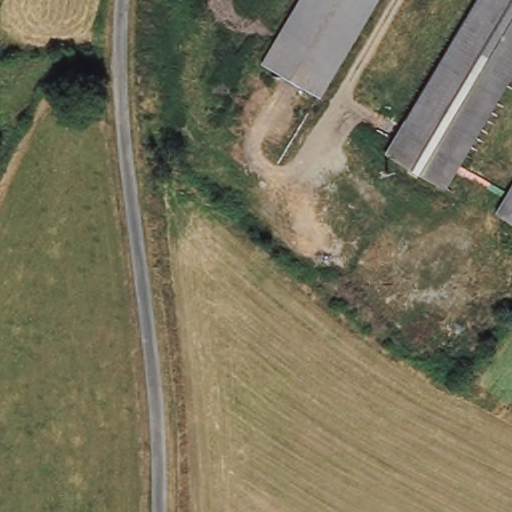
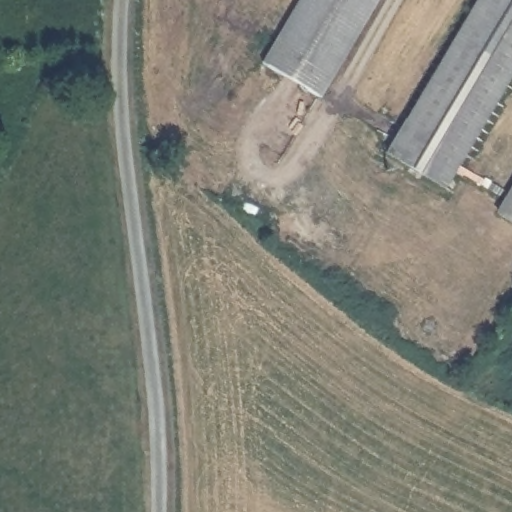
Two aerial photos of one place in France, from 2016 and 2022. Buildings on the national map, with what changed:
unchanged [(312,95),(259,64),(297,0),(370,0),(312,95)]
unchanged [(447,180),(441,186),(388,152),(395,141),(479,0),(512,0),(512,70),(447,180)]
unchanged [(505,210),(512,198),(512,215),(505,210)]

